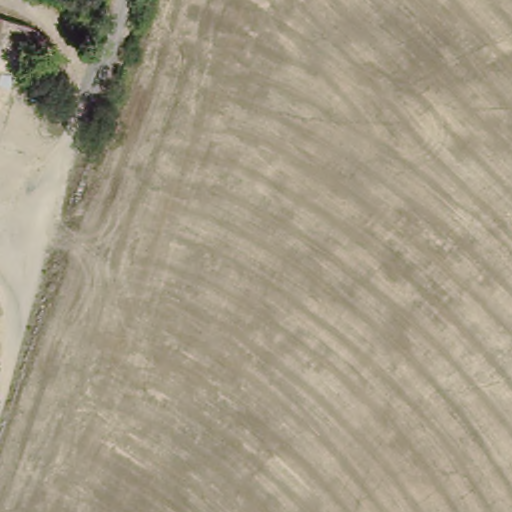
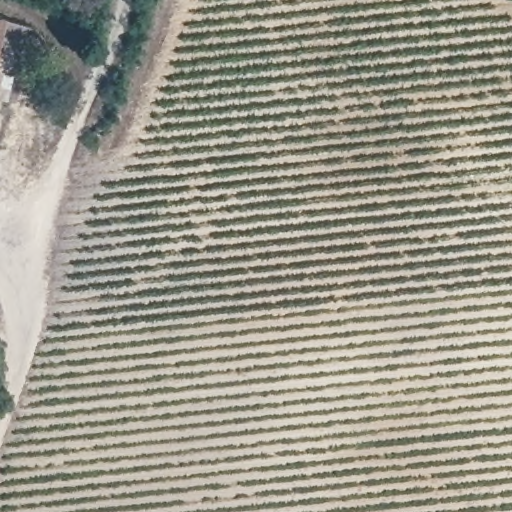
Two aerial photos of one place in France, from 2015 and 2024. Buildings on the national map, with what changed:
unchanged [(9,19),(0,48),(0,17),(9,19)]
unchanged [(2,70),(0,75),(0,70),(2,70)]

